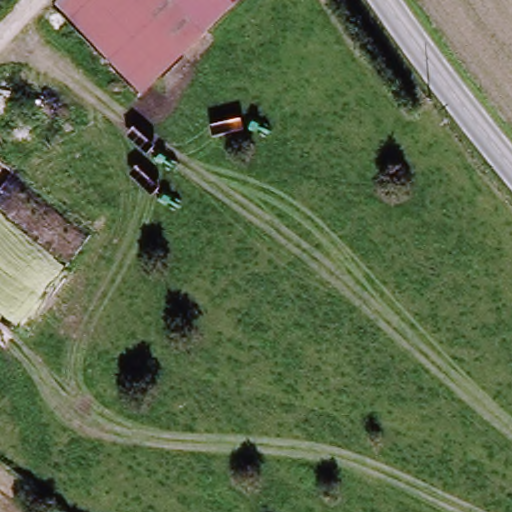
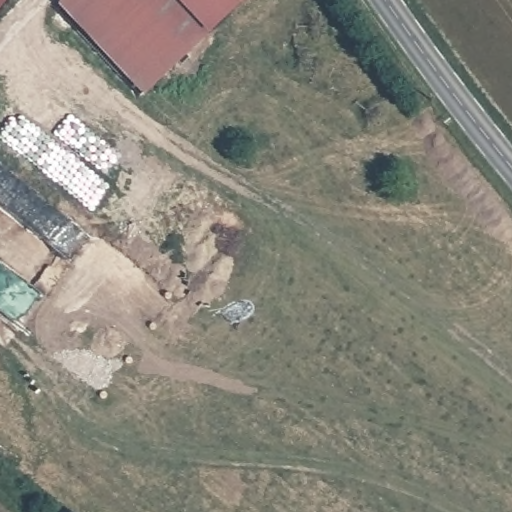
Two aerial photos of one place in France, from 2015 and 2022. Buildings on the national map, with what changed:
unchanged [(60,0),(237,0),(143,90),(60,0)]

